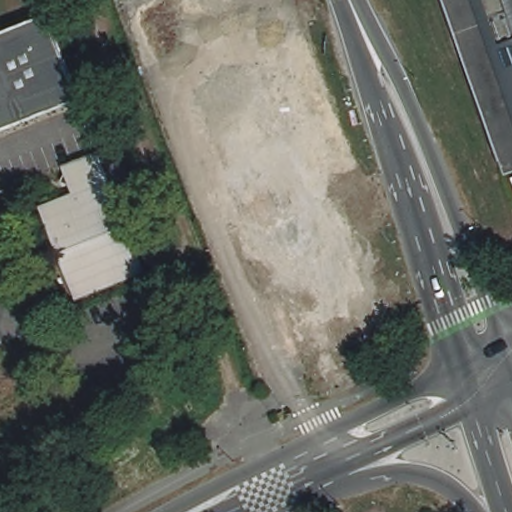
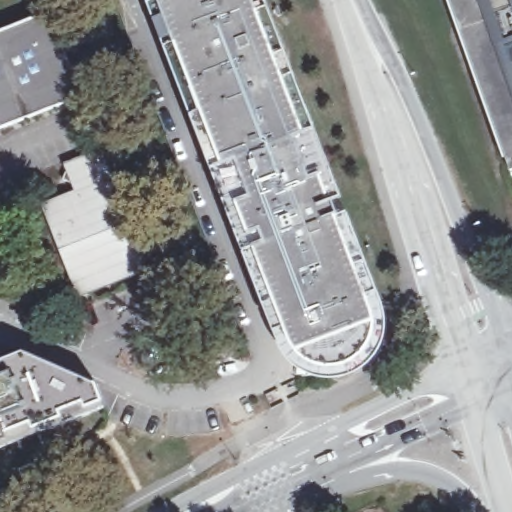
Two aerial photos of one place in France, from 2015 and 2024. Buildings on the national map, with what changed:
new [(341,199),(332,202),(338,216),(347,214),(378,293),(386,313),(387,326),(386,337),(383,347),(377,357),(369,365),(359,372),(350,377),(340,380),(329,380),(319,379),(306,374),(294,366),(287,360),(280,347),(274,334),(146,0),(266,0),(341,199)]
unchanged [(510,179),(453,16),(447,0),(512,0),(512,178),(510,179)]
unchanged [(2,132),(0,129),(0,34),(49,11),(86,94),(2,132)]
demolished [(273,193),(244,204),(206,103),(235,92),(273,193)]
unchanged [(148,272),(78,300),(41,206),(74,194),(63,165),(101,151),(148,272)]
demolished [(271,226),(345,200),(367,261),(353,266),(364,293),(341,301),(346,315),(327,323),(329,327),(313,333),(311,338),(307,341),(301,341),(298,337),(296,333),(298,328),(278,273),(272,276),(266,262),(250,267),(237,231),(269,220),(271,226)]
demolished [(32,352),(69,445),(0,471),(0,365),(32,352)]
new [(25,353),(96,384),(105,403),(107,407),(0,450),(0,363),(25,353)]

